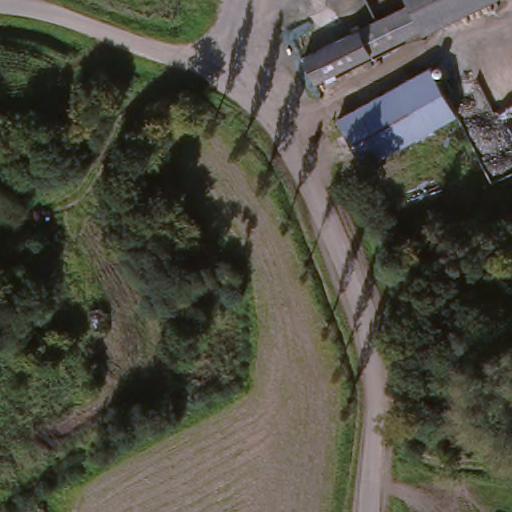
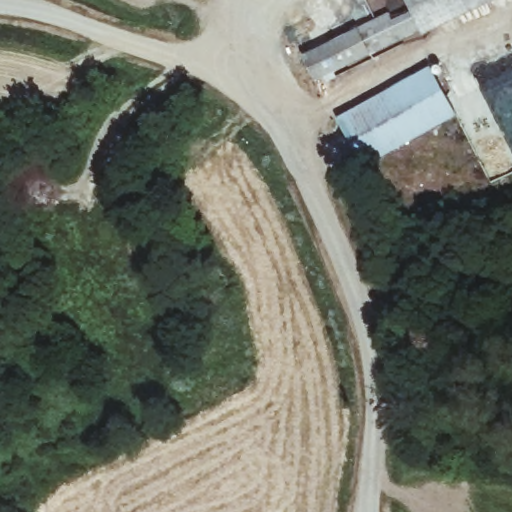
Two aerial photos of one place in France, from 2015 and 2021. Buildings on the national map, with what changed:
unchanged [(326,47),(403,7),(400,0),(501,0),(340,77),(326,47)]
unchanged [(428,70),(453,112),(363,165),(338,122),(428,70)]

